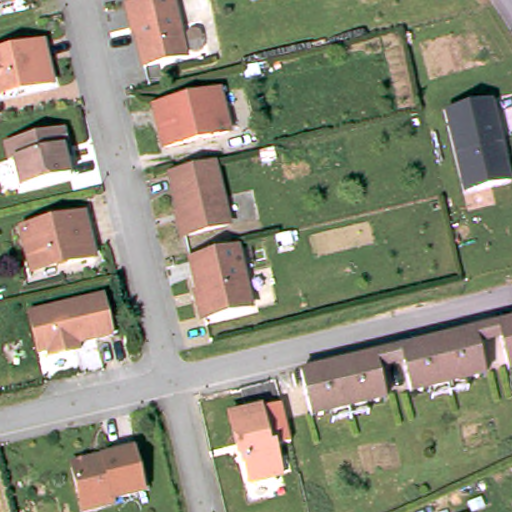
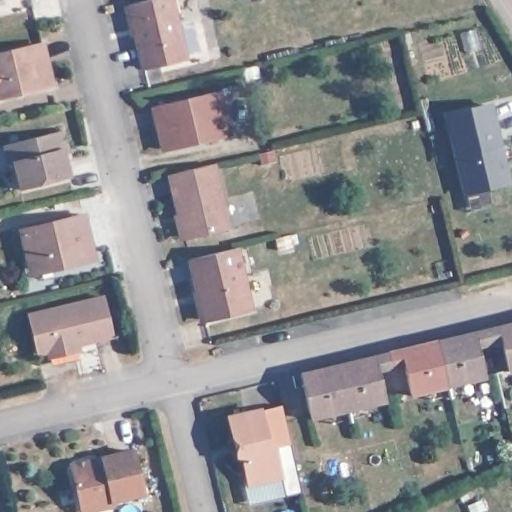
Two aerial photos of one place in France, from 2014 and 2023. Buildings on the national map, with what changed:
unchanged [(144,68),(128,6),(150,0),(169,0),(184,60),(144,68)]
unchanged [(48,77),(0,89),(0,46),(38,37),(48,77)]
unchanged [(164,142),(153,101),(218,86),(228,126),(164,142)]
unchanged [(445,114),(492,102),(512,183),(512,185),(463,196),(445,114)]
unchanged [(5,157),(0,159),(0,142),(69,125),(73,143),(77,155),(71,157),(75,173),(12,189),(5,157)]
unchanged [(273,155),(258,158),(255,146),(270,142),(273,155)]
unchanged [(225,225),(182,236),(166,173),(210,162),(225,225)]
unchanged [(52,261),(28,267),(17,227),(80,211),(91,256),(64,262),(52,265),(52,261)]
unchanged [(288,241),(273,244),(270,232),(285,229),(288,241)]
unchanged [(247,305),(200,316),(185,254),(232,242),(247,305)]
unchanged [(70,351),(46,357),(45,351),(33,353),(23,312),(98,293),(110,336),(77,343),(78,349),(70,351)]
unchanged [(505,366),(493,322),(512,318),(512,364),(505,366)]
unchanged [(430,395),(428,386),(410,391),(399,347),(472,328),(483,372),(457,378),(460,388),(430,395)]
unchanged [(330,422),(327,412),(309,417),(298,373),(372,354),(383,397),(356,405),(358,414),(330,422)]
unchanged [(233,445),(225,416),(255,407),(265,443),(270,442),(277,472),(247,481),(240,452),(235,453),(233,445)]
unchanged [(77,507),(66,466),(70,457),(80,456),(83,457),(88,460),(97,457),(96,452),(130,445),(140,489),(109,497),(110,501),(95,503),(77,507)]

